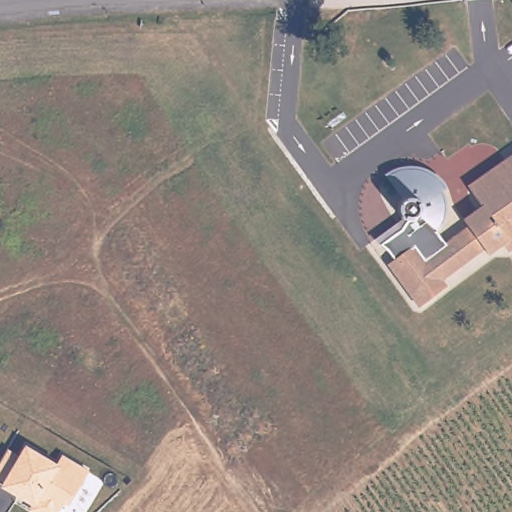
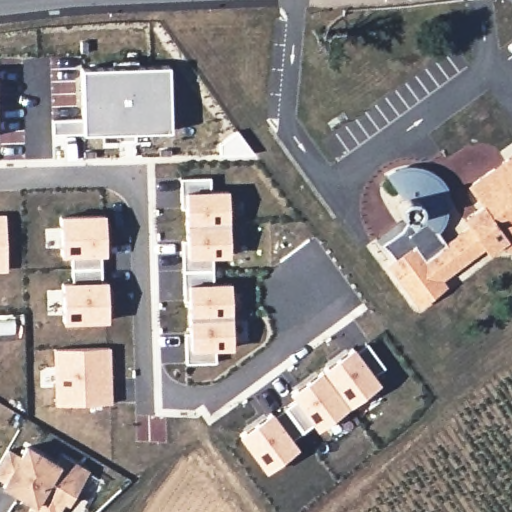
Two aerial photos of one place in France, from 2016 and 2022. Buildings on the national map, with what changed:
new [(53,120),(82,120),(81,68),(113,67),(112,60),(139,60),(138,67),(169,67),(170,132),(151,132),(151,141),(103,142),(103,134),(54,135),(53,120)]
unchanged [(508,248),(506,244),(489,255),(486,250),(442,280),(446,285),(419,304),(389,261),(396,257),(389,247),(381,244),(405,226),(407,220),(404,219),(403,217),(402,216),(401,215),(399,214),(399,212),(399,210),(399,209),(399,207),(399,205),(399,204),(399,202),(401,200),(402,199),(403,198),(404,197),(389,175),(393,173),(398,170),(402,169),(407,168),(412,168),(417,169),(422,170),(427,171),(432,173),(436,175),(439,179),(443,182),(446,186),(448,191),(443,194),(444,197),(446,201),(447,206),(446,210),(446,215),(444,219),(443,223),(441,226),(439,230),(438,230),(447,244),(470,227),(465,220),(484,207),(471,189),(512,160),(512,245),(508,248)]
new [(210,179),(209,191),(229,190),(231,257),(211,257),(213,271),(212,283),(232,282),(233,348),(214,350),(215,362),(186,363),(185,333),(189,334),(189,301),(184,302),(183,241),(187,241),(186,209),(182,209),(180,179),(210,179)]
new [(61,281),(72,281),(73,267),(70,255),(61,256),(60,215),(106,214),(107,255),(100,255),(101,268),(100,280),(108,280),(108,321),(63,322),(61,281)]
new [(0,215),(6,215),(8,270),(0,270),(0,215)]
new [(239,435),(271,410),(274,415),(285,408),(294,400),(289,392),(352,345),(357,351),(367,343),(384,367),(374,375),(379,382),(315,429),(312,423),(303,431),(292,438),(299,447),(265,471),(239,435)]
new [(54,404),(53,350),(111,347),(112,403),(54,404)]
unchanged [(26,442),(56,461),(62,454),(89,470),(67,506),(63,504),(58,512),(33,512),(28,509),(31,502),(1,485),(4,481),(0,479),(0,462),(8,447),(19,451),(26,442)]

